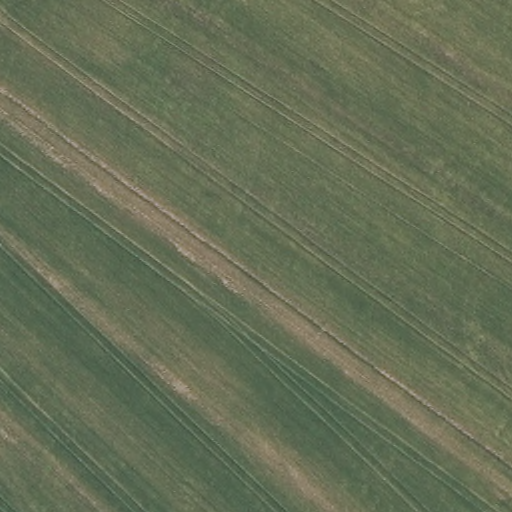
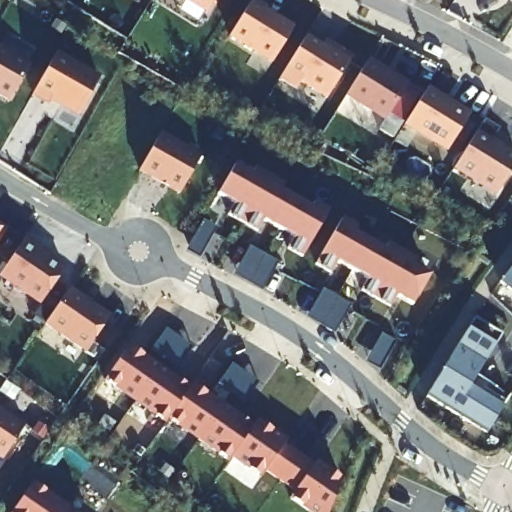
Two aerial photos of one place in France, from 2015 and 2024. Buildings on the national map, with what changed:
new [(188,0),(214,0),(207,11),(188,0)]
new [(265,10),(293,28),(267,71),(224,44),(252,0),(253,0),(266,8),(265,10)]
new [(305,36),(317,44),(320,38),(325,41),(324,43),(333,49),(335,46),(352,58),(327,97),(300,81),(295,89),(279,79),(305,36)]
new [(14,100),(0,93),(0,52),(32,69),(14,100)]
new [(99,80),(81,113),(39,89),(57,58),(99,80)]
new [(407,84),(385,120),(345,95),(368,59),(407,84)]
new [(427,88),(441,96),(440,99),(448,104),(450,102),(469,114),(446,150),(404,124),(427,88)]
new [(498,129),(490,141),(512,154),(512,168),(495,194),(453,168),(483,119),(498,129)]
new [(163,136),(204,159),(183,196),(142,173),(163,136)]
new [(259,233),(230,217),(237,206),(220,196),(237,168),(253,178),(257,171),(285,188),(282,194),(312,211),(316,205),(331,214),(305,259),(290,251),(296,240),(265,222),(259,233)]
new [(202,228),(205,222),(215,228),(220,230),(202,262),(187,254),(202,228),(212,234),(202,228)]
new [(333,275),(318,267),(344,222),(359,230),(356,235),(387,253),(390,247),(418,264),(415,269),(432,279),(415,308),(398,299),(392,309),(363,293),(370,283),(339,264),(333,275)]
new [(0,251),(0,226),(10,232),(0,251)]
new [(40,297),(0,274),(0,271),(16,242),(58,264),(40,297)]
new [(235,279),(252,248),(257,251),(277,262),(282,264),(265,294),(235,279)]
new [(503,285),(512,273),(512,292),(503,285)]
new [(308,320),(326,291),(330,294),(350,305),(355,308),(337,337),(308,320)]
new [(72,292),(112,319),(88,354),(48,327),(72,292)]
new [(460,348),(477,321),(505,338),(479,379),(512,399),(490,436),(429,399),(460,348)]
new [(152,349),(165,329),(193,347),(178,366),(152,349)]
new [(367,365),(384,336),(391,340),(400,345),(396,352),(382,374),(367,365)]
new [(130,344),(190,386),(192,384),(253,426),(258,419),(287,439),(283,444),(313,465),(317,462),(340,478),(328,512),(309,512),(289,498),(294,491),(263,472),(262,474),(250,467),(248,469),(230,456),(227,459),(218,453),(168,418),(165,422),(104,381),(130,344)]
new [(217,385),(232,364),(257,382),(243,402),(217,385)]
new [(3,460),(0,458),(0,407),(25,424),(3,460)]
new [(33,480),(79,512),(12,512),(33,480)]

